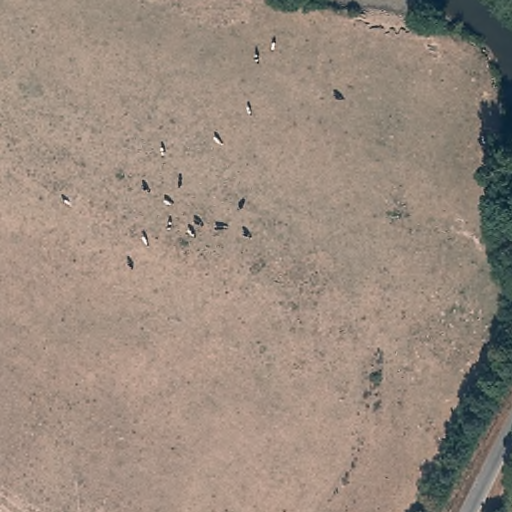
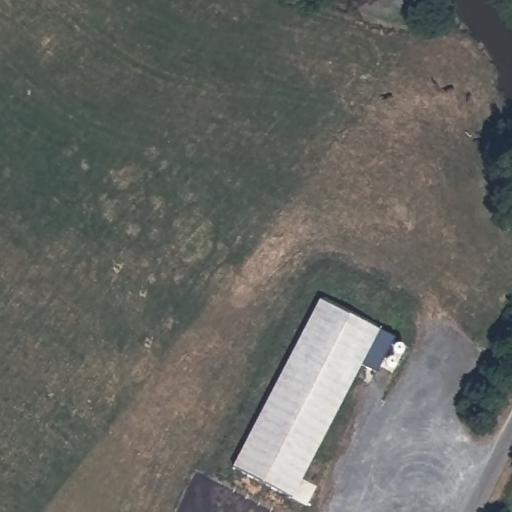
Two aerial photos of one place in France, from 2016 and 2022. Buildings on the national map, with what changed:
new [(318,298),(394,336),(375,374),(361,367),(291,498),(231,467),(318,298)]

